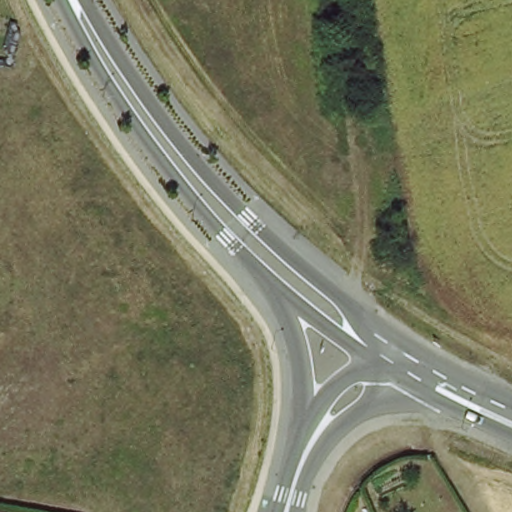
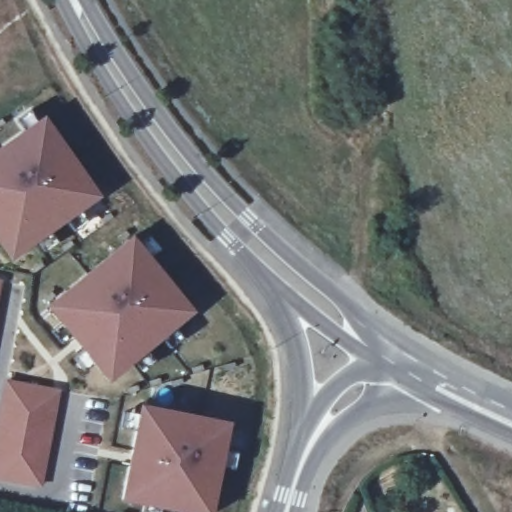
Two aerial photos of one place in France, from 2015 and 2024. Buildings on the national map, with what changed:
new [(37,112),(93,190),(2,251),(0,248),(0,136),(37,112)]
new [(125,229),(186,304),(101,373),(43,296),(125,229)]
new [(58,389),(42,484),(0,478),(0,385),(0,382),(58,389)]
new [(132,399),(222,417),(203,512),(201,512),(112,494),(132,399)]

